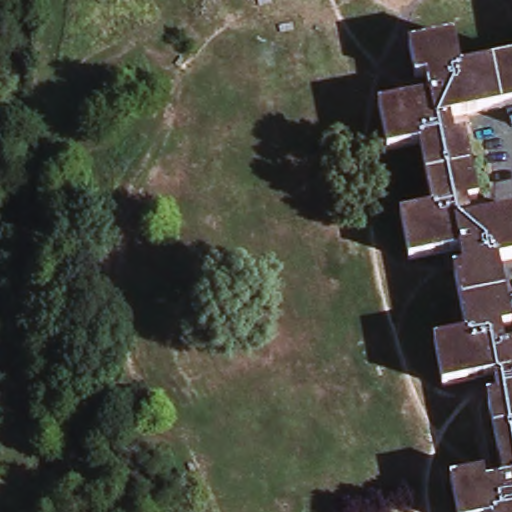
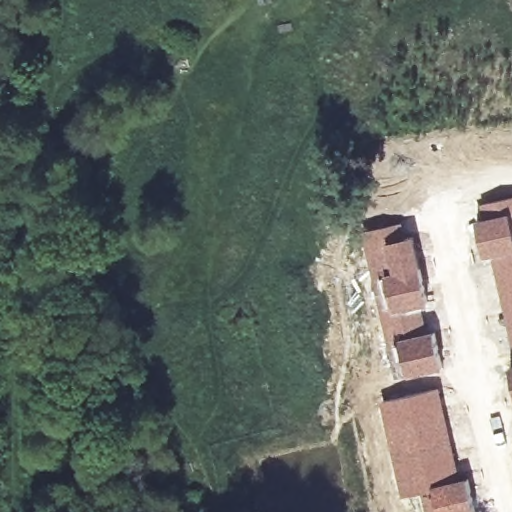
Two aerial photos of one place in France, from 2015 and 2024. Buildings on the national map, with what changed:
demolished [(461,118),(463,135),(472,133),(483,200),(475,202),(477,219),(512,213),(512,262),(508,263),(512,290),(512,331),(508,332),(511,347),(512,346),(512,512),(465,512),(459,479),(492,473),(493,482),(510,479),(497,397),(505,396),(502,380),(451,387),(443,342),(474,336),(463,270),(472,268),(468,250),(417,260),(409,214),(440,207),(427,143),(397,148),(387,102),(438,92),(436,76),(426,77),(420,44),(464,37),(471,67),(512,60),(512,108),(461,118)]
new [(512,195),(512,248),(491,256),(486,257),(476,203),(512,195)]
new [(403,221),(406,236),(414,234),(428,305),(423,306),(380,312),(370,272),(364,230),(403,221)]
new [(512,248),(512,343),(491,256),(512,248)]
new [(423,306),(428,330),(396,337),(397,342),(396,342),(387,345),(380,312),(423,306)]
new [(397,342),(396,337),(428,330),(433,328),(443,367),(405,376),(396,342),(397,342)]
new [(511,363),(512,363),(512,369),(511,363)]
new [(461,477),(467,475),(476,512),(424,512),(420,494),(402,498),(379,401),(439,387),(461,477)]

